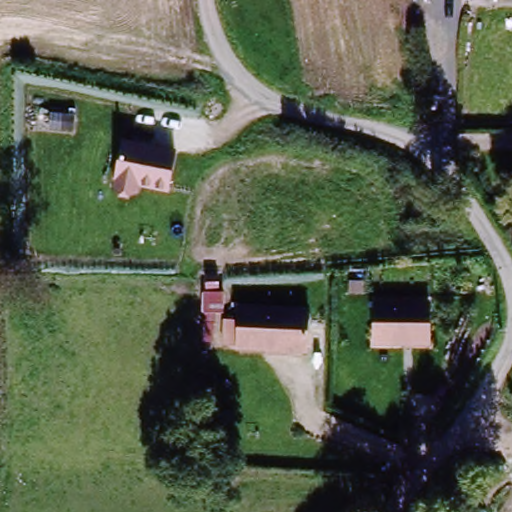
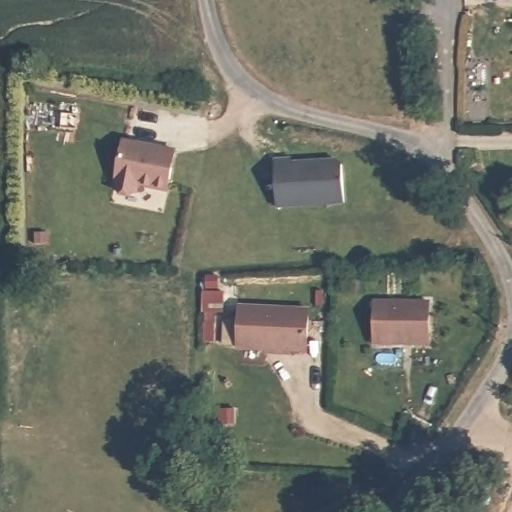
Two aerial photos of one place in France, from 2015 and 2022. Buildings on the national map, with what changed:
unchanged [(487,2),(458,1),(459,0),(488,0),(487,2)]
unchanged [(487,2),(488,0),(512,0),(512,3),(487,2)]
unchanged [(177,151),(169,195),(141,188),(138,201),(111,194),(123,140),(177,151)]
new [(275,165),(291,165),(291,168),(337,167),(342,171),(343,209),(276,211),(275,165)]
unchanged [(305,309),(301,350),(262,346),(262,348),(234,345),(237,302),(305,309)]
unchanged [(425,304),(426,344),(401,343),(401,346),(372,347),(370,306),(425,304)]

